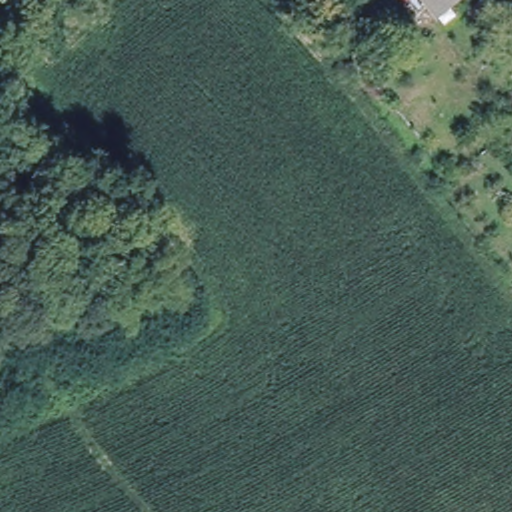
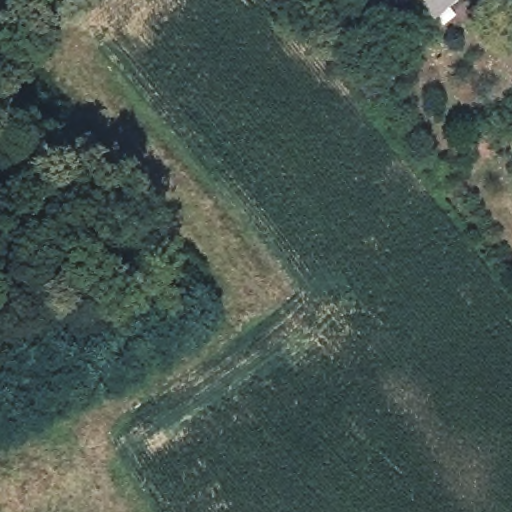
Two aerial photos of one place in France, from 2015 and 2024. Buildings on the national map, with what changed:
unchanged [(415,0),(452,0),(426,16),(415,0)]

